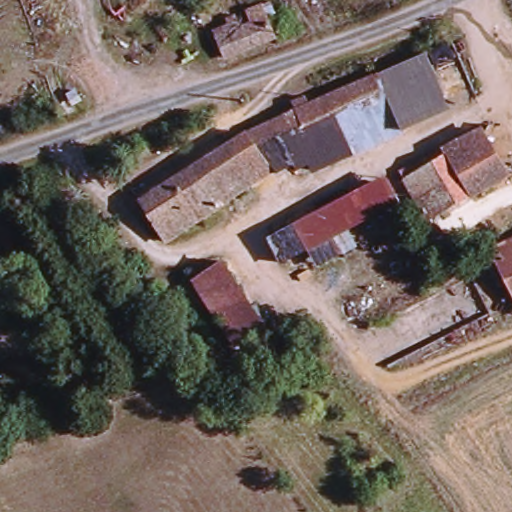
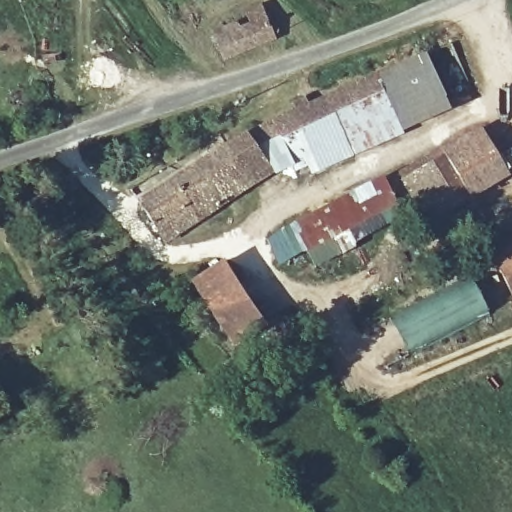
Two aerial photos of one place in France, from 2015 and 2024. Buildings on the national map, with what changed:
unchanged [(266,16),(274,34),(228,53),(220,35),(266,16)]
unchanged [(420,55),(439,98),(388,121),(369,78),(420,55)]
unchanged [(369,78),(388,121),(301,160),(282,117),(369,78)]
unchanged [(282,117),(301,160),(265,174),(240,136),(282,117)]
unchanged [(478,126),(507,178),(428,222),(399,170),(478,126)]
unchanged [(163,242),(138,204),(240,136),(265,174),(163,242)]
unchanged [(396,204),(327,242),(337,259),(316,268),(304,253),(279,265),(264,240),(383,176),(396,204)]
unchanged [(512,303),(492,263),(512,253),(512,303)]
unchanged [(220,262),(266,328),(232,349),(188,280),(220,262)]
new [(405,345),(394,328),(472,283),(484,304),(447,325),(450,332),(415,352),(410,342),(405,345)]

